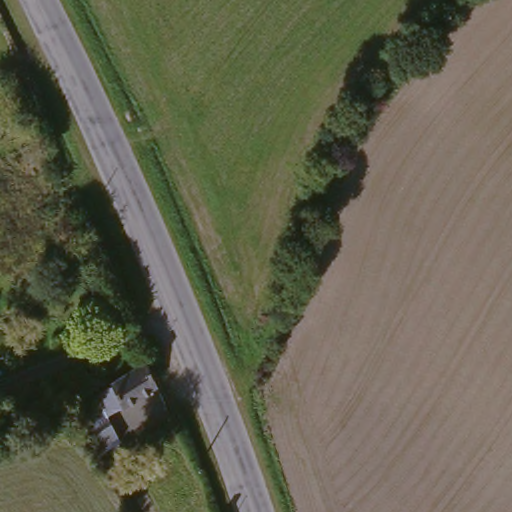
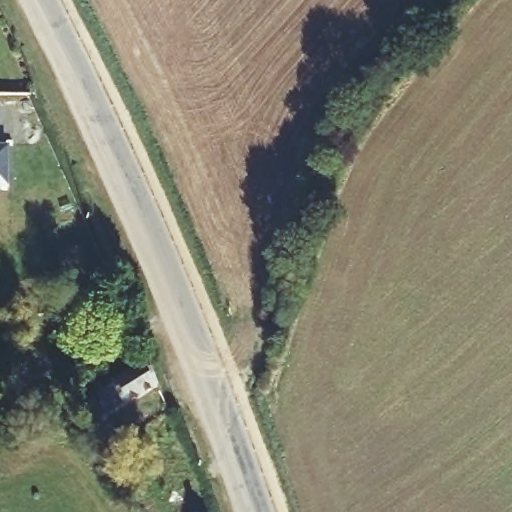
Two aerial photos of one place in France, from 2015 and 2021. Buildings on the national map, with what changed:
new [(9,145),(9,189),(0,188),(0,145),(9,145)]
unchanged [(102,421),(95,407),(92,399),(107,390),(106,388),(140,365),(152,391),(102,421)]
unchanged [(102,421),(107,430),(113,426),(122,442),(101,456),(94,446),(91,447),(78,431),(95,407),(102,421)]

